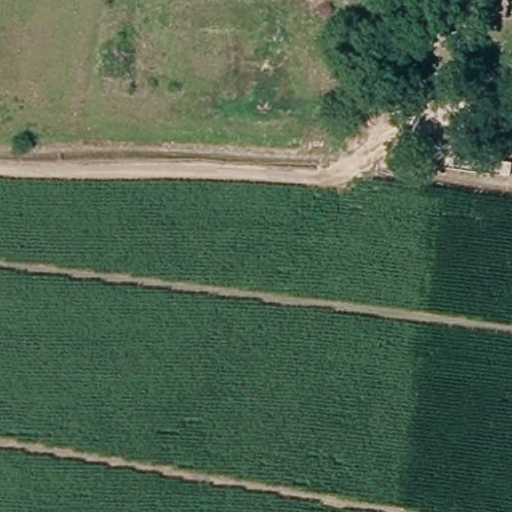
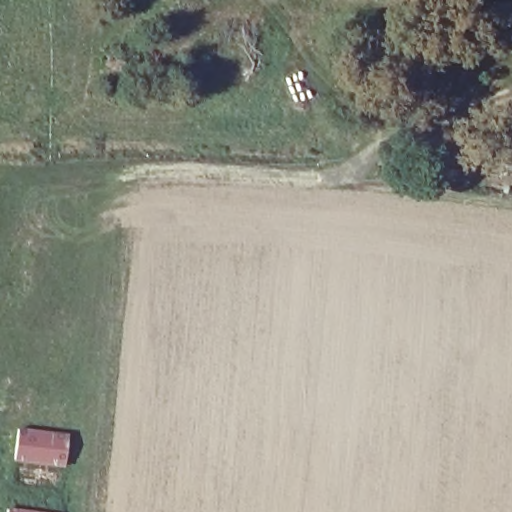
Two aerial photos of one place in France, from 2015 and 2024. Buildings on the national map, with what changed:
new [(65,467),(14,461),(18,428),(69,435),(65,467)]
new [(40,512),(7,512),(8,507),(40,512)]

